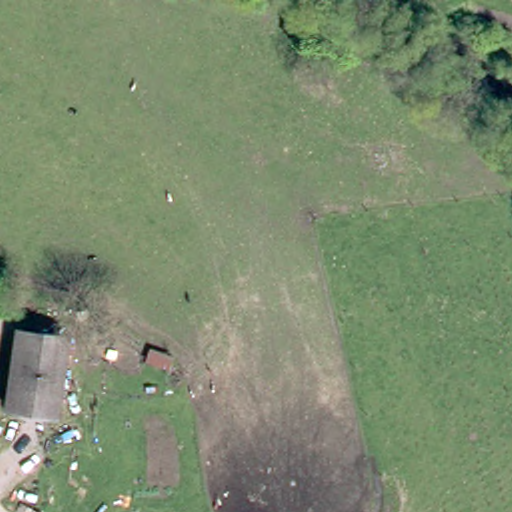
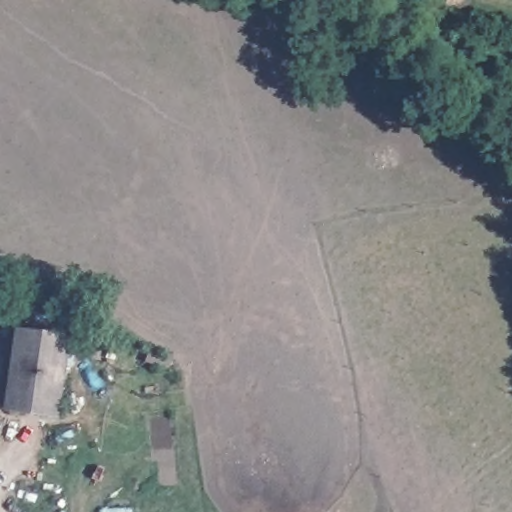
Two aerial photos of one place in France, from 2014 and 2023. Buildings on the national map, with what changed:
unchanged [(67,339),(58,412),(16,407),(25,334),(67,339)]

